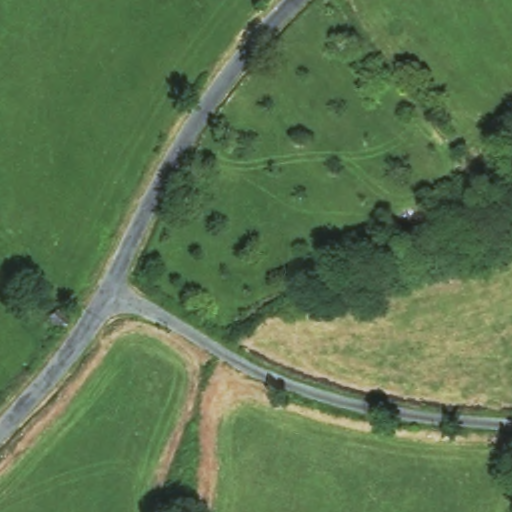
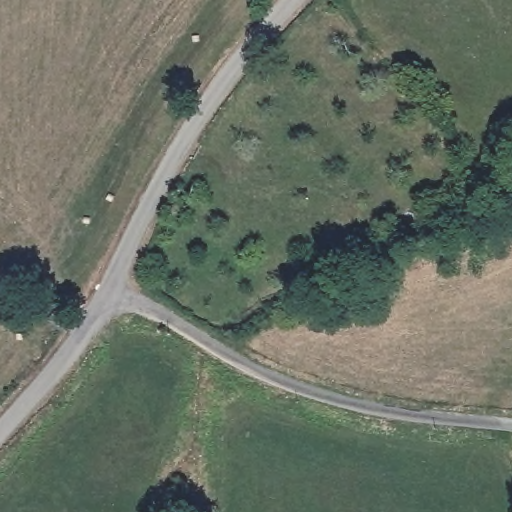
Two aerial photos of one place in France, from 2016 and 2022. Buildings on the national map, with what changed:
unchanged [(51,352),(32,337),(57,313),(72,328),(51,352)]

